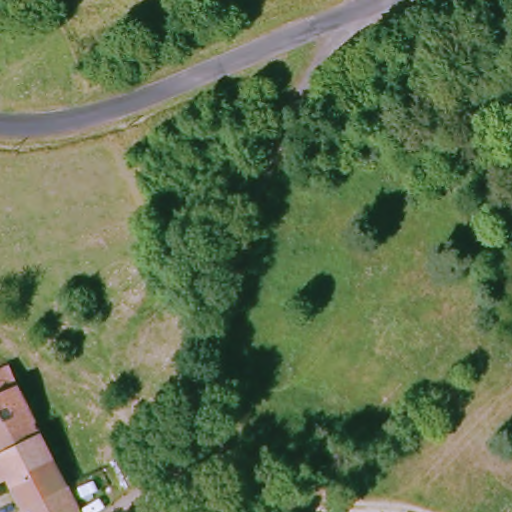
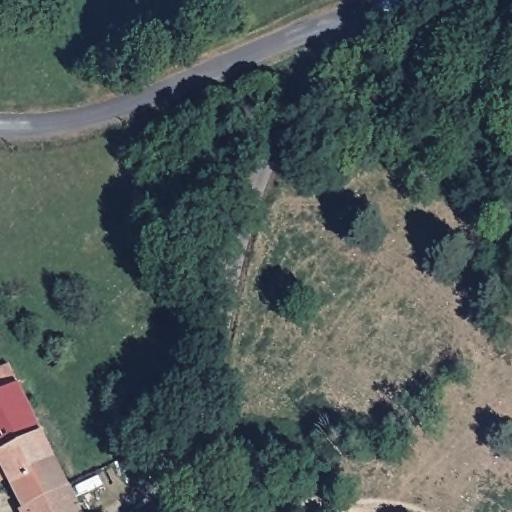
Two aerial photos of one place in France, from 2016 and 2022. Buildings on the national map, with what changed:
unchanged [(2,365),(37,436),(52,466),(8,487),(1,475),(0,476),(0,366),(2,365)]
unchanged [(8,487),(52,466),(65,494),(26,512),(20,512),(8,487)]
unchanged [(65,494),(74,512),(26,512),(65,494)]

